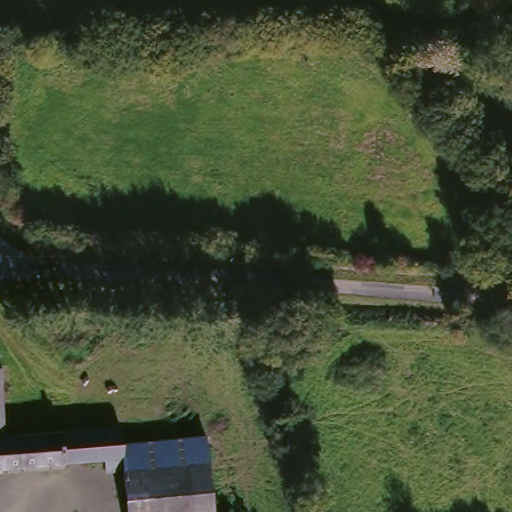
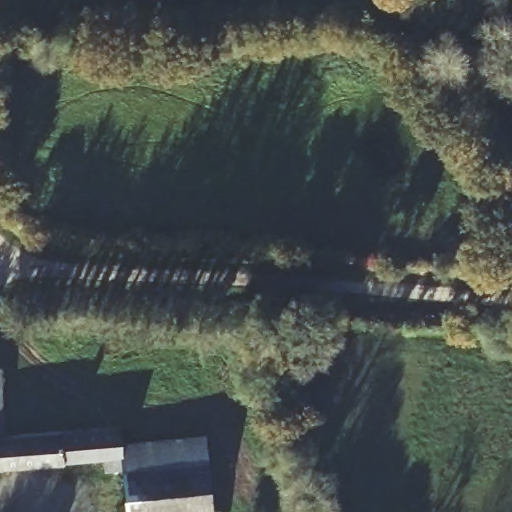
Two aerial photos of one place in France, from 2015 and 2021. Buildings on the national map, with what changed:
unchanged [(0,434),(0,368),(4,434),(0,434)]
unchanged [(4,434),(120,426),(121,442),(122,456),(120,457),(121,471),(101,473),(99,462),(0,469),(0,434),(4,434)]
unchanged [(121,442),(205,436),(215,512),(126,512),(121,471),(120,457),(122,456),(121,442)]

